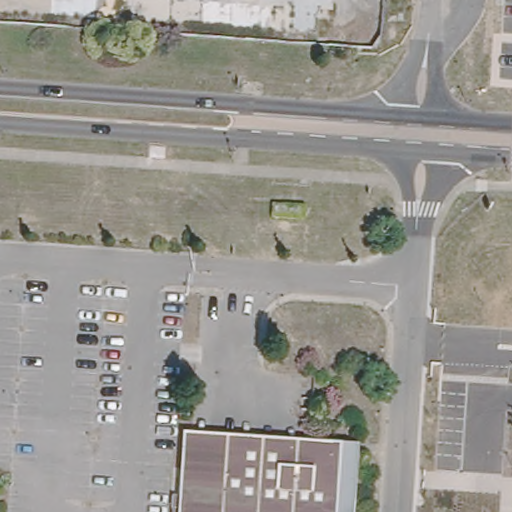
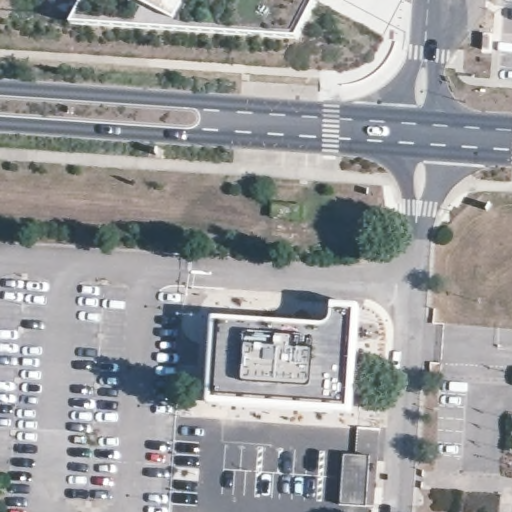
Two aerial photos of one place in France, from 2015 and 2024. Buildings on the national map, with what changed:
new [(71,23),(82,0),(315,0),(295,38),(71,23)]
unchanged [(304,204),(303,217),(270,214),(271,201),(304,204)]
demolished [(502,243),(512,243),(512,295),(498,294),(502,243)]
new [(345,406),(212,401),(219,324),(330,329),(330,310),(352,313),(345,406)]
new [(355,454),(357,427),(381,429),(372,507),(368,506),(339,504),(343,454),(355,454)]
demolished [(356,446),(352,501),(343,500),(343,512),(185,512),(186,505),(188,464),(190,435),(356,446)]

